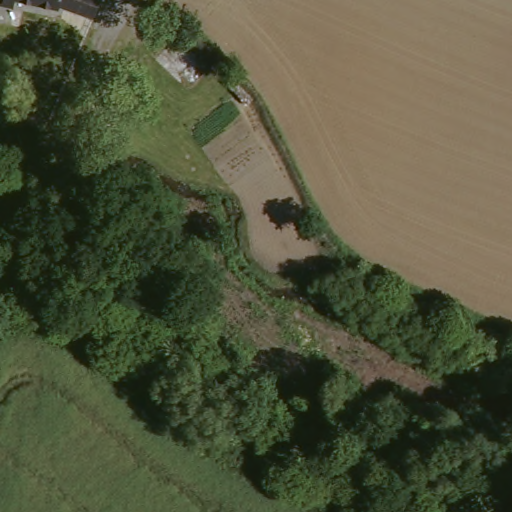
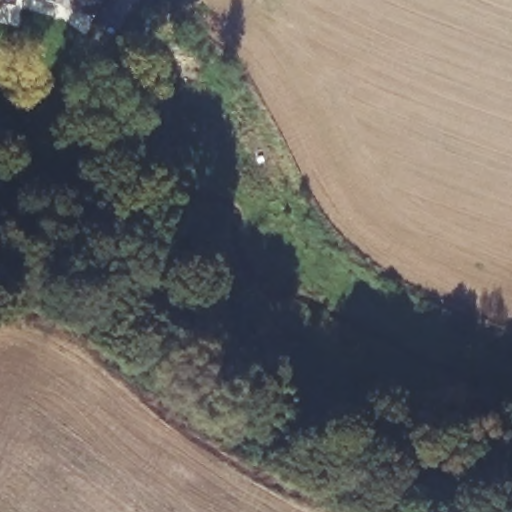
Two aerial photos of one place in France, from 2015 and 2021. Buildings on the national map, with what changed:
unchanged [(0,1),(0,0),(19,0),(19,4),(0,1)]
unchanged [(60,4),(40,0),(104,0),(96,16),(60,4)]

